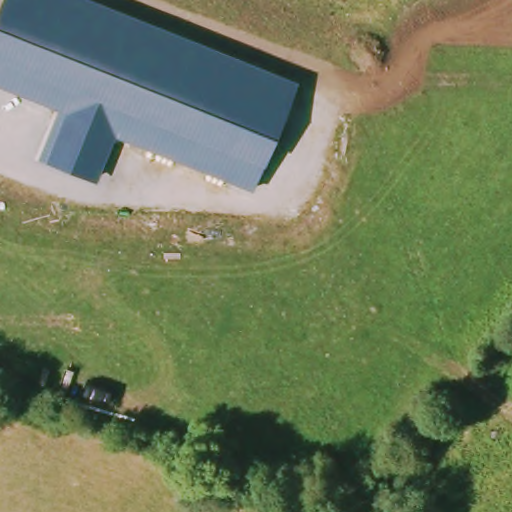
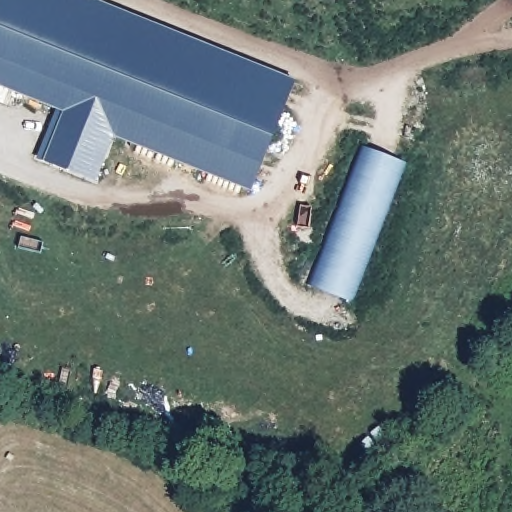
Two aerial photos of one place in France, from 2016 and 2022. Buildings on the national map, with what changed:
unchanged [(115,136),(96,180),(38,157),(57,109),(0,85),(0,0),(95,0),(296,79),(250,191),(115,136)]
new [(363,146),(407,164),(353,302),(309,286),(363,146)]

